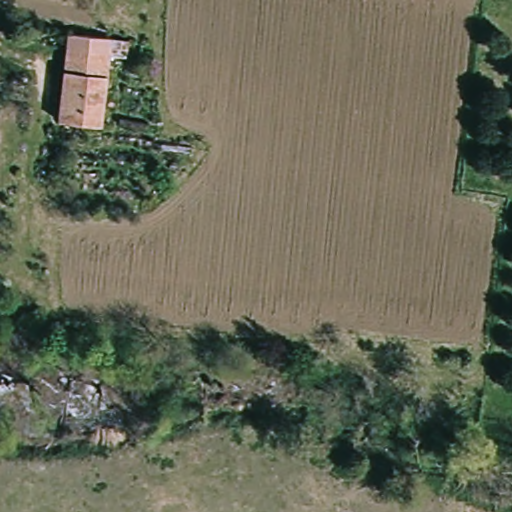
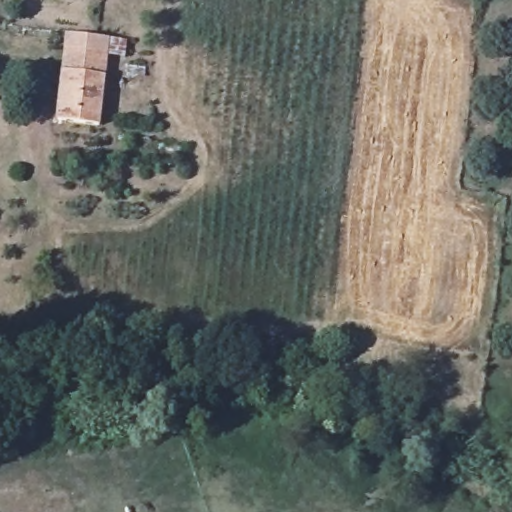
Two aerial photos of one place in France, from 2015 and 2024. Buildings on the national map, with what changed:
unchanged [(58,118),(66,50),(66,35),(109,40),(100,124),(63,119),(58,118)]

